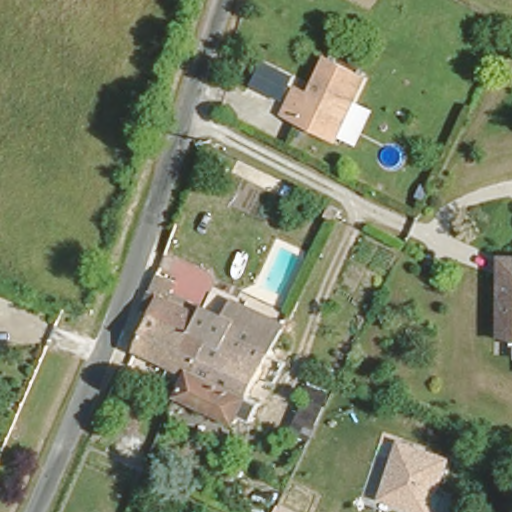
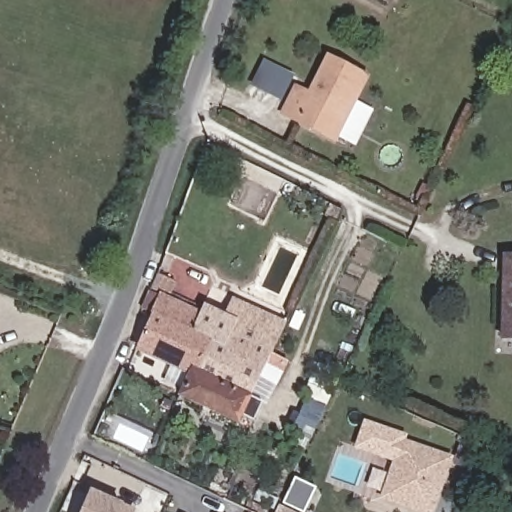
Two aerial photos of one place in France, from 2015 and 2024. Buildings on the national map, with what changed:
unchanged [(324,128),(280,106),(292,82),(308,91),(327,52),(363,71),(348,100),(332,133),(324,128)]
unchanged [(282,101),(251,86),(264,61),(294,75),(282,101)]
unchanged [(512,333),(501,333),(503,251),(512,251),(512,333)]
unchanged [(259,371),(249,396),(264,402),(254,424),(179,390),(183,380),(167,373),(174,356),(137,339),(158,291),(145,285),(151,268),(176,280),(170,296),(197,309),(202,300),(226,311),(233,297),(283,320),(270,345),(288,353),(278,378),(259,371)]
new [(354,448),(363,420),(407,435),(406,440),(401,439),(392,462),(354,448)]
unchanged [(416,512),(379,499),(401,439),(454,457),(436,512),(416,512)]
new [(123,505),(132,509),(131,512),(79,512),(88,492),(123,505)]
new [(293,512),(277,512),(280,506),(293,512)]

